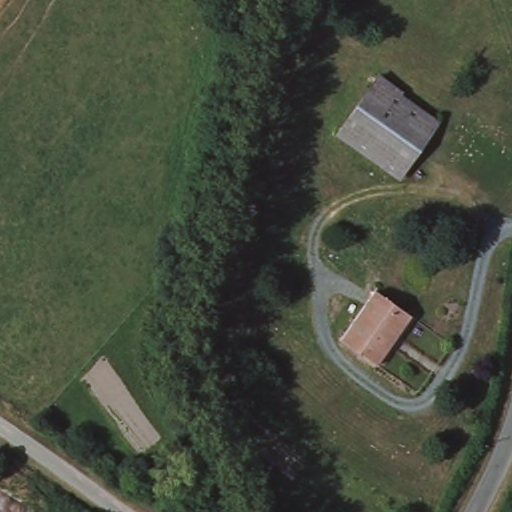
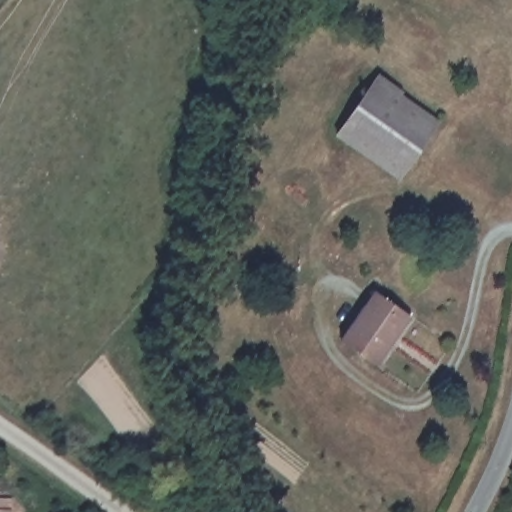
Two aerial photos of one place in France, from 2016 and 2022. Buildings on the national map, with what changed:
unchanged [(371,83),(436,122),(402,179),(352,149),(335,139),(335,138),(371,83)]
unchanged [(407,317),(373,369),(342,347),(375,296),(407,317)]

